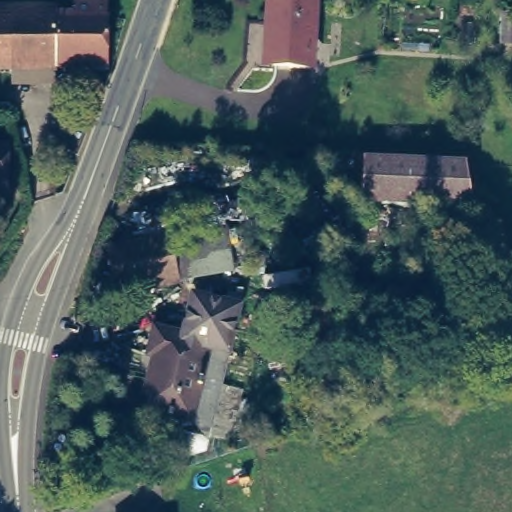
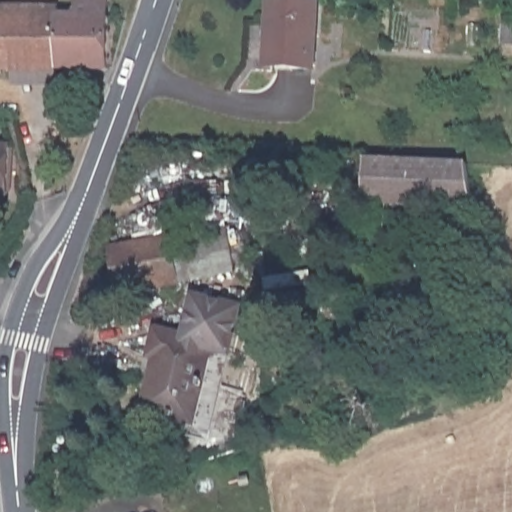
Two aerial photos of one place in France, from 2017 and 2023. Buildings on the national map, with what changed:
unchanged [(49,21),(74,20),(75,0),(104,0),(104,17),(108,18),(108,72),(0,71),(0,10),(49,10),(49,21)]
unchanged [(314,11),(311,71),(261,69),(269,8),(314,11)]
unchanged [(8,194),(0,194),(0,146),(10,147),(8,194)]
unchanged [(478,208),(369,203),(370,156),(473,162),(478,208)]
unchanged [(174,236),(181,275),(119,285),(114,245),(174,236)]
unchanged [(158,355),(153,353),(159,330),(186,334),(197,297),(241,309),(231,351),(213,346),(195,421),(178,418),(176,421),(168,419),(167,414),(151,412),(143,410),(158,355)]

